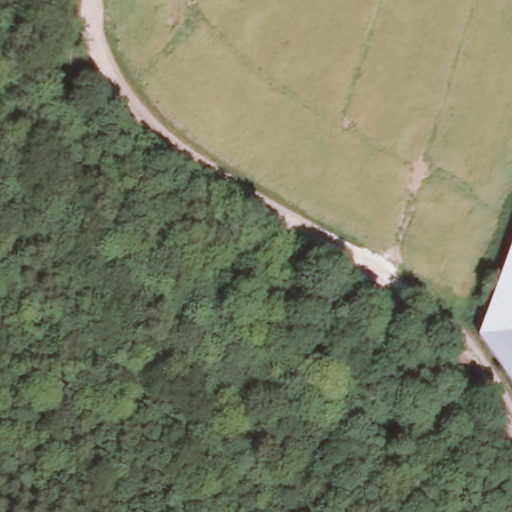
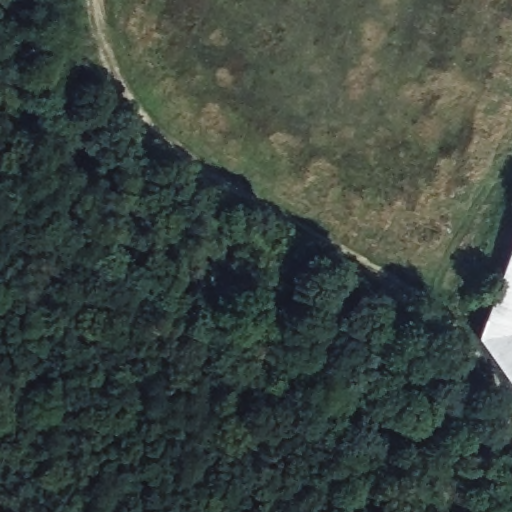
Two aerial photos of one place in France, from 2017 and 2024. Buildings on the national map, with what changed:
unchanged [(512,234),(512,387),(475,331),(512,234)]

